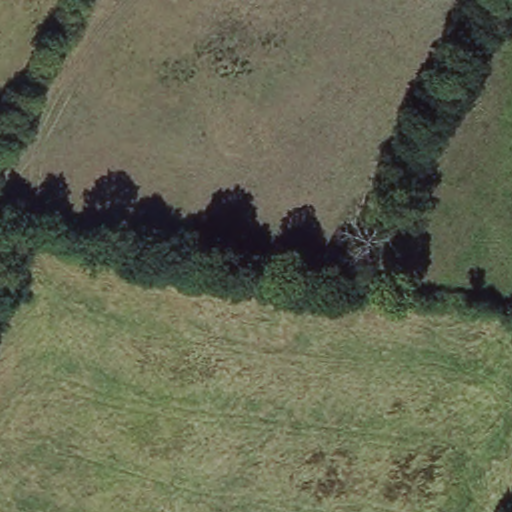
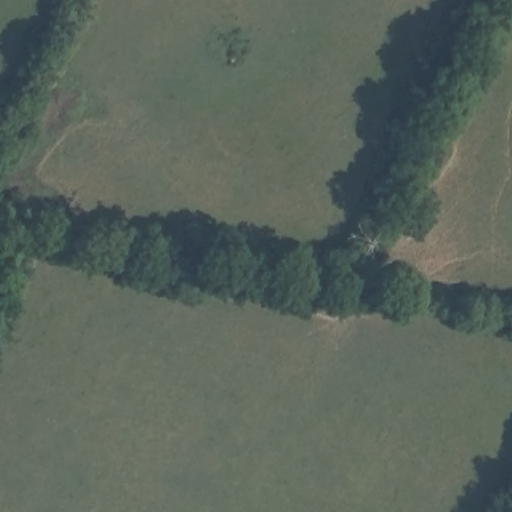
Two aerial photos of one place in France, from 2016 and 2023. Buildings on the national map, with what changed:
[]

